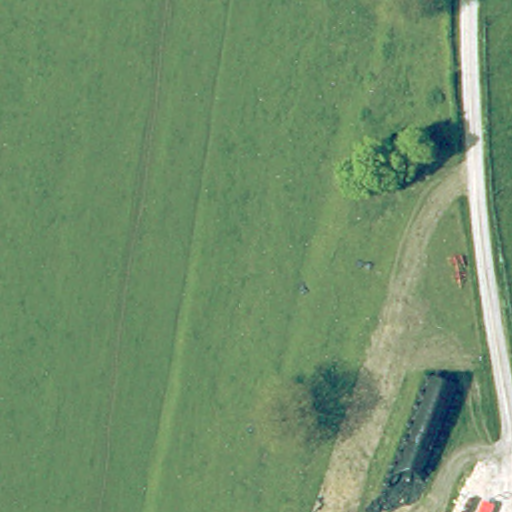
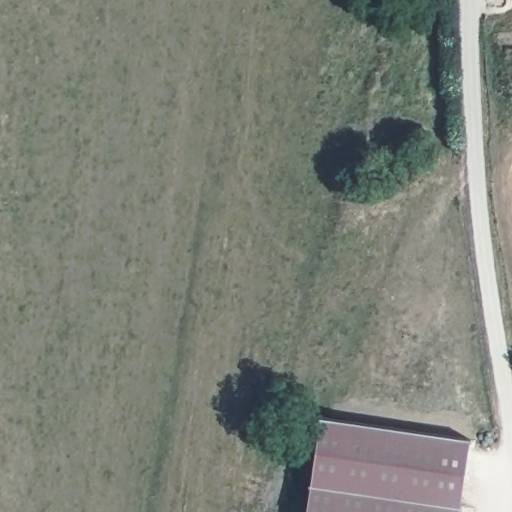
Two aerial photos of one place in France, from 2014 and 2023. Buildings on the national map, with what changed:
new [(459,507),(309,484),(320,416),(470,439),(459,507)]
new [(305,512),(309,484),(459,507),(458,512),(305,512)]

